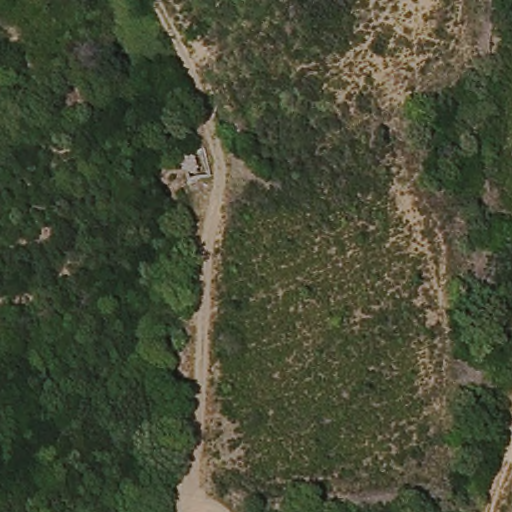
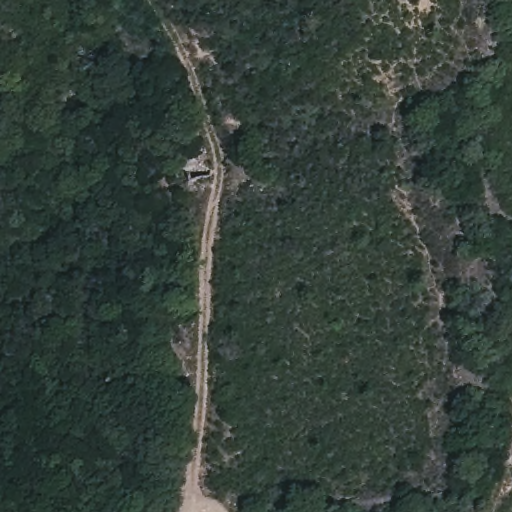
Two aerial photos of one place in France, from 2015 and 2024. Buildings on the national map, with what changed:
unchanged [(185,164),(181,144),(197,142),(201,162),(185,164)]

